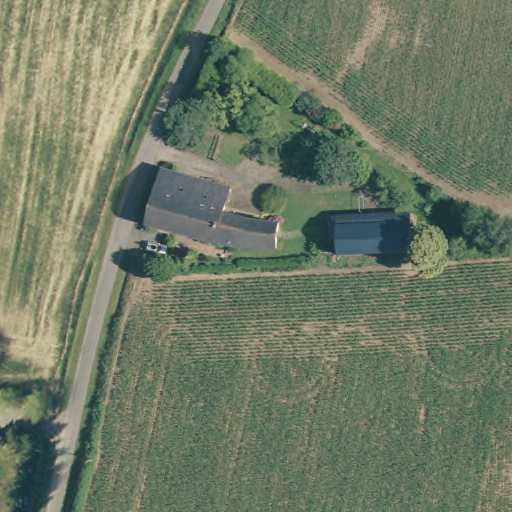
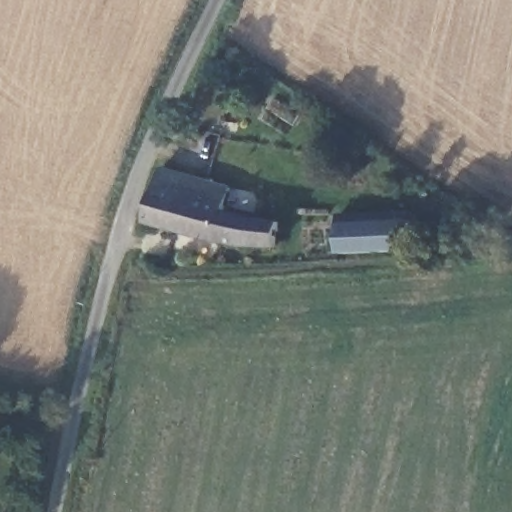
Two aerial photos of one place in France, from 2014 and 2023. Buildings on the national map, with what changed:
unchanged [(155,178),(225,190),(222,206),(226,206),(225,215),(276,223),(276,237),(245,240),(152,226),(155,178)]
unchanged [(426,212),(428,241),(333,244),(331,215),(426,212)]

